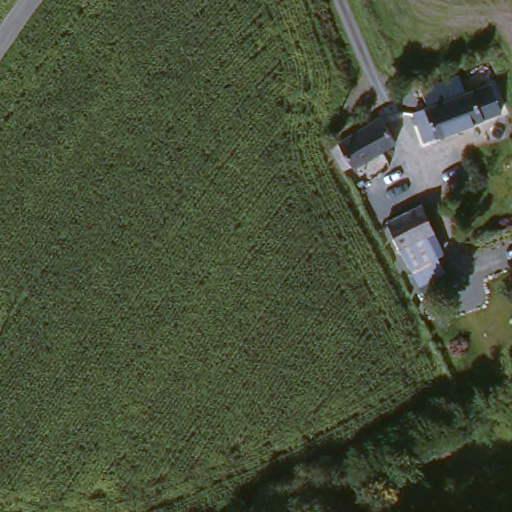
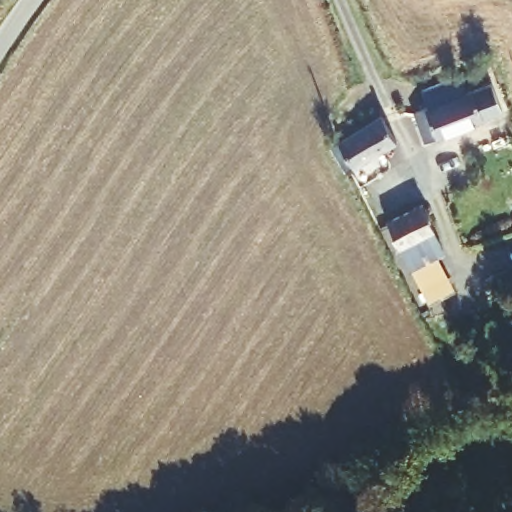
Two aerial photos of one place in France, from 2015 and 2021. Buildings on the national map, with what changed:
unchanged [(491,78),(506,108),(440,138),(438,100),(491,78)]
unchanged [(347,173),(332,145),(384,117),(398,142),(347,173)]
unchanged [(426,219),(439,240),(431,246),(444,270),(423,284),(393,239),(426,219)]

